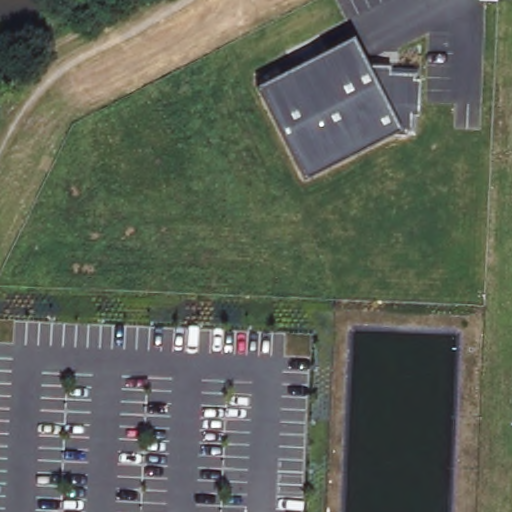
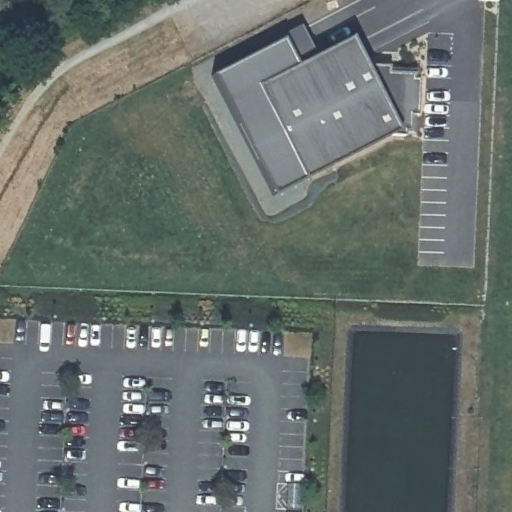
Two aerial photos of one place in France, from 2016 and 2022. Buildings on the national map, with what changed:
new [(275,195),(214,75),(285,40),(283,36),(304,24),(317,55),(257,86),(305,180),(275,195)]
unchanged [(352,37),(367,65),(391,66),(391,73),(416,73),(416,79),(421,79),(420,115),(414,115),(414,132),(408,132),(408,136),(406,136),(392,135),(305,180),(257,86),(352,37)]

